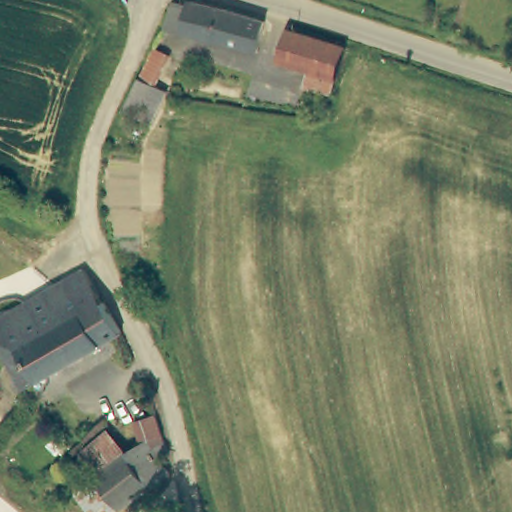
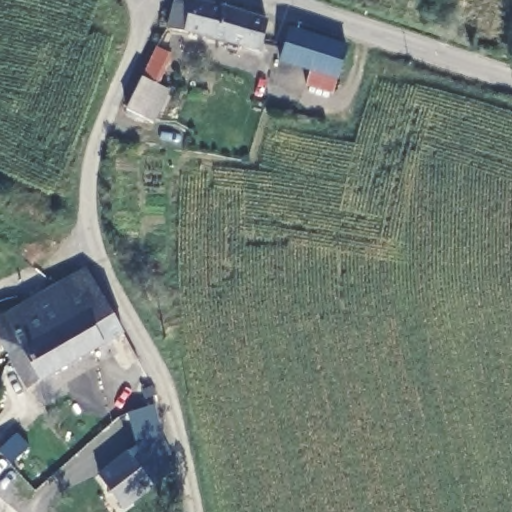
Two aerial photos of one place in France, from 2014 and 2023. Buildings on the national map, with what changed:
unchanged [(186,0),(199,0),(265,16),(255,50),(167,26),(173,0),(182,0),(186,1),(186,0)]
unchanged [(357,37),(338,101),(308,95),(316,76),(283,59),(292,18),(357,37)]
unchanged [(169,53),(157,78),(167,83),(149,119),(124,103),(153,43),(169,53)]
unchanged [(0,319),(13,310),(49,287),(81,267),(120,330),(28,389),(0,346),(0,319)]
unchanged [(153,382),(139,388),(131,367),(147,362),(153,382)]
unchanged [(170,472),(119,510),(92,480),(123,454),(142,439),(137,416),(157,413),(162,436),(170,472)]

